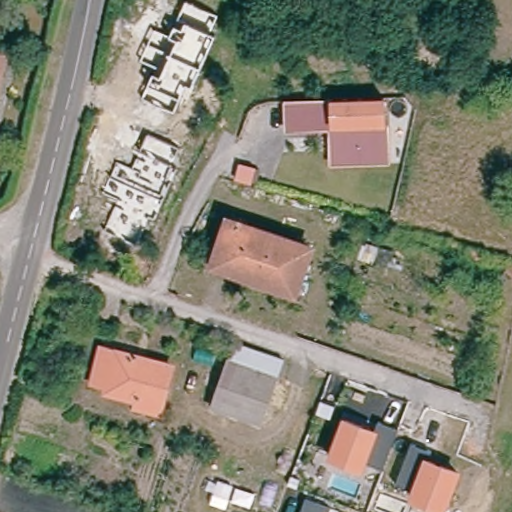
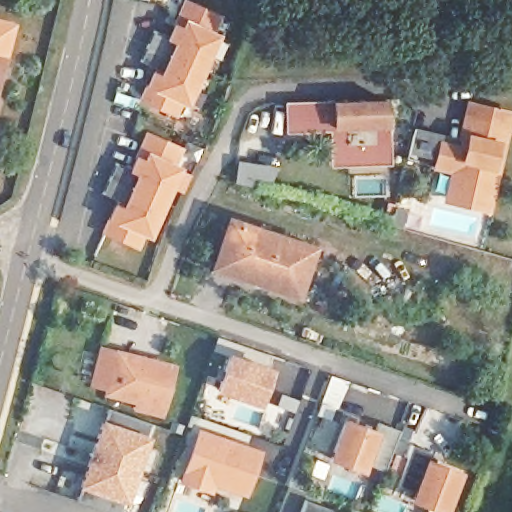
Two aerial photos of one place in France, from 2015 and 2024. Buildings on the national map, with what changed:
new [(223,13),(215,31),(220,33),(186,106),(182,104),(176,115),(139,98),(145,84),(151,68),(159,72),(161,66),(142,58),(155,28),(167,32),(172,22),(183,0),(191,0),(223,13)]
demolished [(202,30),(160,31),(157,0),(202,0),(202,30)]
new [(0,89),(0,19),(17,23),(0,89)]
demolished [(0,103),(0,62),(12,66),(0,103)]
unchanged [(386,97),(391,164),(330,165),(329,130),(285,131),(284,102),(386,97)]
new [(512,108),(512,120),(502,166),(490,210),(443,199),(450,170),(432,166),(434,158),(407,152),(414,125),(458,136),(467,99),(512,108)]
demolished [(160,141),(143,186),(127,180),(130,171),(100,160),(113,123),(160,141)]
new [(114,203),(121,205),(125,198),(105,192),(117,162),(129,167),(135,152),(145,130),(185,147),(176,163),(182,166),(150,238),(144,235),(139,248),(100,229),(114,203)]
unchanged [(308,254),(295,299),(213,274),(226,229),(308,253),(308,254)]
new [(275,368),(260,407),(215,390),(229,352),(275,368)]
unchanged [(157,417),(106,402),(107,394),(91,389),(104,354),(170,376),(157,417)]
new [(121,512),(112,512),(78,500),(77,486),(101,418),(109,408),(151,422),(145,434),(150,435),(127,504),(122,503),(121,512)]
unchanged [(400,427),(385,468),(369,462),(364,472),(327,459),(343,417),(376,429),(379,420),(400,427)]
new [(247,497),(215,485),(212,494),(179,482),(198,427),(262,449),(247,497)]
unchanged [(433,459),(462,470),(447,512),(438,512),(408,500),(412,489),(396,484),(412,443),(435,451),(433,459)]
unchanged [(329,512),(302,512),(306,498),(331,506),(329,512)]

